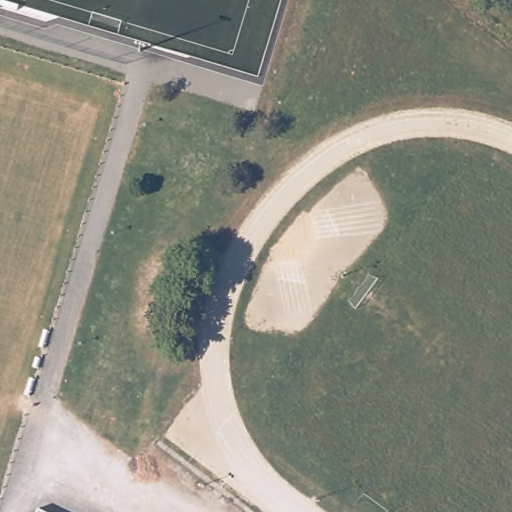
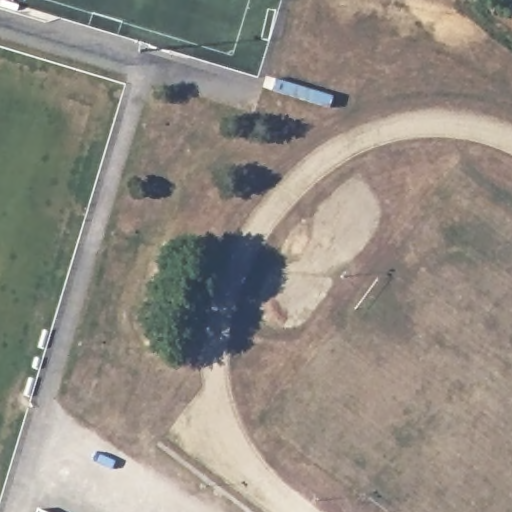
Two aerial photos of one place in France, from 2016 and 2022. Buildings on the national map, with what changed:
unchanged [(51,512),(40,512),(42,508),(51,512)]

